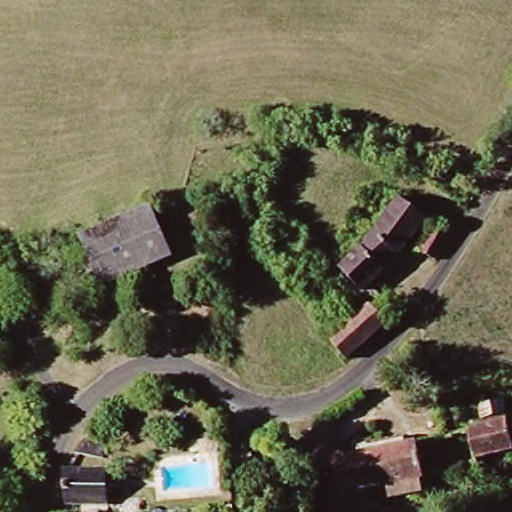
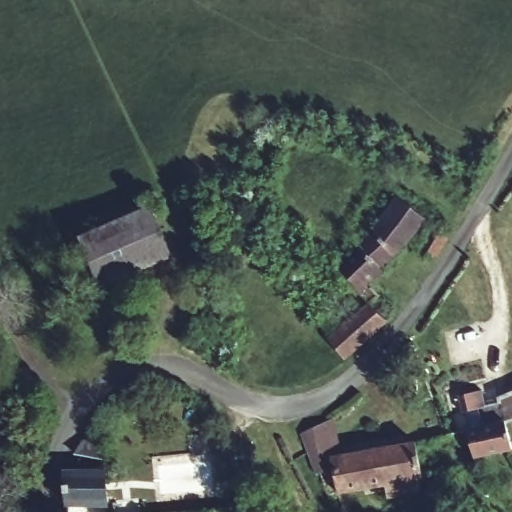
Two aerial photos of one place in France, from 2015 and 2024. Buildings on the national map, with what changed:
unchanged [(338,268),(358,251),(401,201),(425,220),(360,293),(338,268)]
unchanged [(102,287),(82,244),(147,212),(168,256),(102,287)]
unchanged [(435,271),(419,260),(437,236),(450,245),(435,271)]
unchanged [(371,310),(384,325),(350,357),(332,337),(367,306),(371,310)]
unchanged [(480,427),(475,406),(502,402),(505,424),(509,423),(512,437),(512,454),(474,460),(466,430),(480,427)]
unchanged [(386,502),(339,511),(338,489),(316,490),(310,445),(332,428),(340,471),(351,469),(349,452),(400,445),(403,462),(419,460),(423,495),(426,512),(388,512),(386,502)]
unchanged [(105,471),(102,501),(59,502),(65,474),(105,471)]

